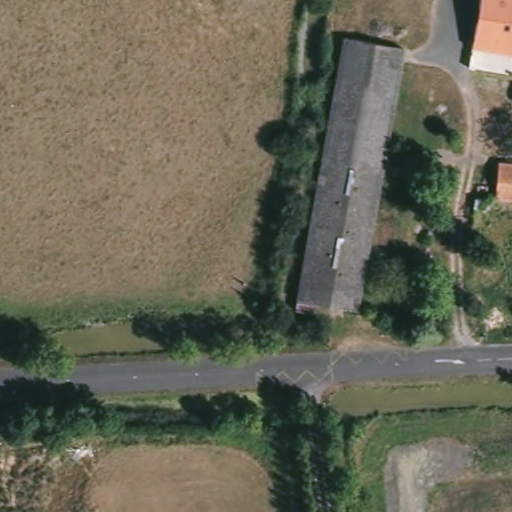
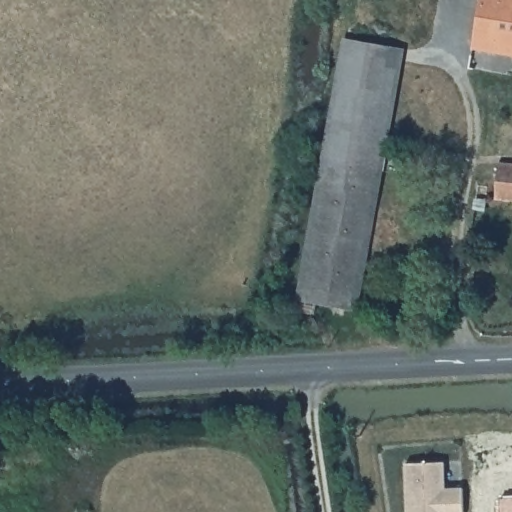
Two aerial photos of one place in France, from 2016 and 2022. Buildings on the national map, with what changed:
unchanged [(473,50),(481,0),(512,0),(512,56),(473,50)]
unchanged [(297,303),(336,85),(345,39),(404,50),(394,105),(356,313),(297,303)]
unchanged [(498,200),(495,199),(498,164),(512,165),(512,201),(498,200)]
unchanged [(486,201),(485,213),(474,211),(475,199),(486,201)]
new [(445,462),(445,488),(462,488),(464,512),(408,512),(406,463),(445,462)]

